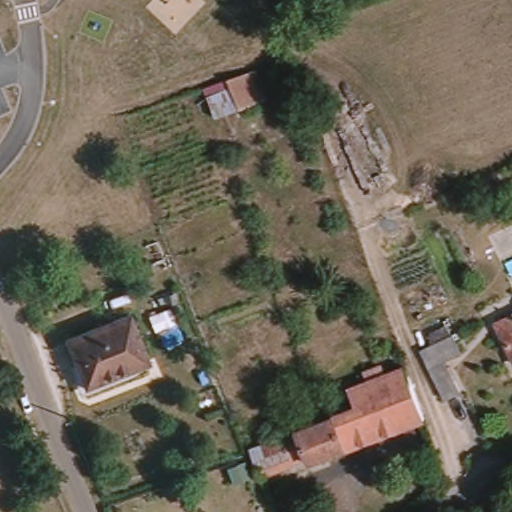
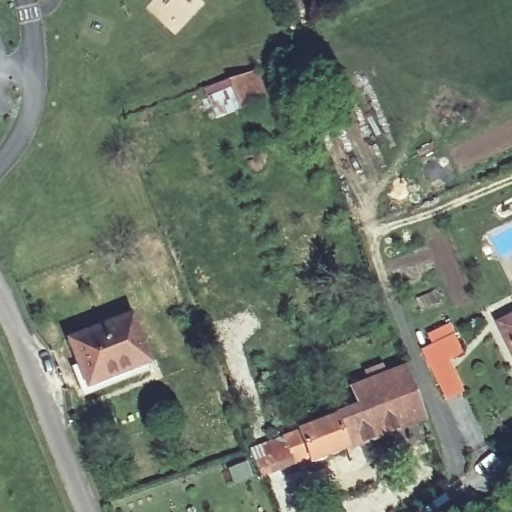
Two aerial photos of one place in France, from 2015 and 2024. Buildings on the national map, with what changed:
unchanged [(255,76),(266,104),(213,119),(203,91),(255,76)]
unchanged [(127,321),(145,369),(85,391),(68,342),(127,321)]
unchanged [(512,322),(512,352),(501,327),(512,322)]
unchanged [(425,350),(452,339),(460,359),(450,363),(460,390),(443,398),(425,350)]
unchanged [(423,418),(311,467),(307,461),(289,468),(280,443),(356,411),(348,391),(405,368),(423,418)]

